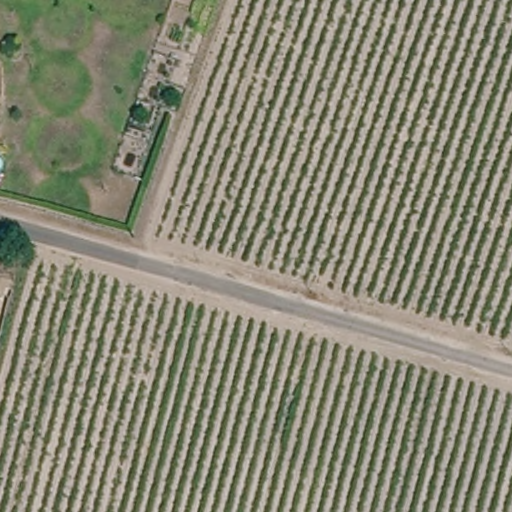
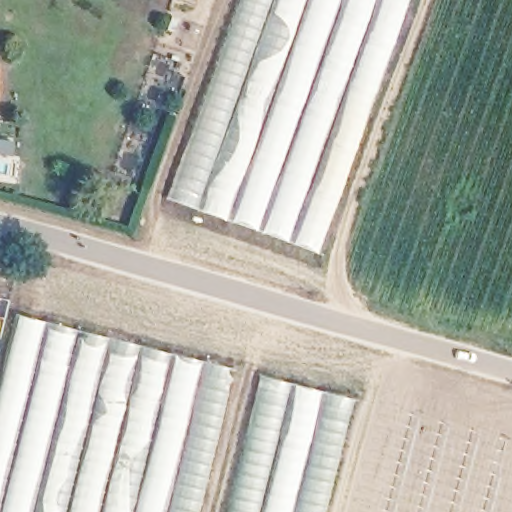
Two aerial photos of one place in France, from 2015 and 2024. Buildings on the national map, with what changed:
new [(238,0),(409,0),(400,29),(369,108),(356,149),(329,220),(315,250),(223,219),(167,197),(221,49),(238,0)]
new [(16,315),(137,345),(200,363),(196,379),(164,500),(161,512),(0,512),(0,378),(16,315)]
new [(259,376),(354,399),(345,432),(335,487),(328,512),(224,512),(259,376)]
new [(164,500),(196,379),(220,391),(219,393),(225,395),(213,475),(217,476),(209,512),(161,512),(164,500)]

